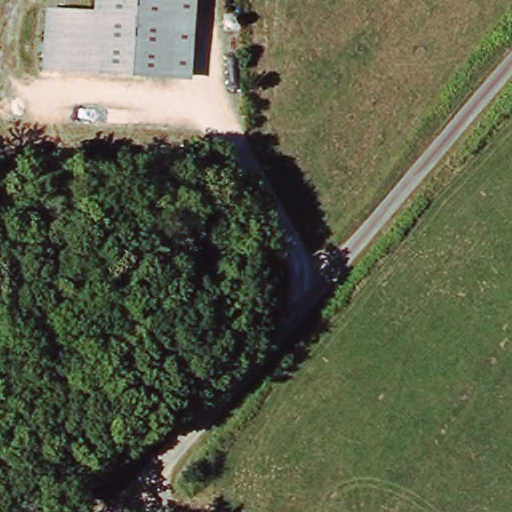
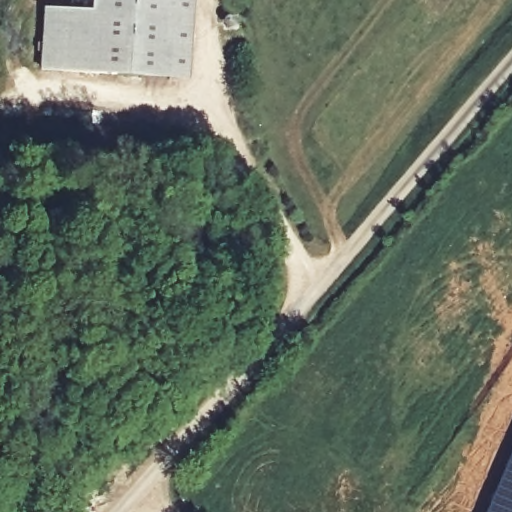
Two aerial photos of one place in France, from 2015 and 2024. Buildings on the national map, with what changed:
unchanged [(45,9),(94,10),(95,0),(194,0),(189,81),(41,70),(45,9)]
new [(512,446),(512,512),(484,512),(512,446)]

